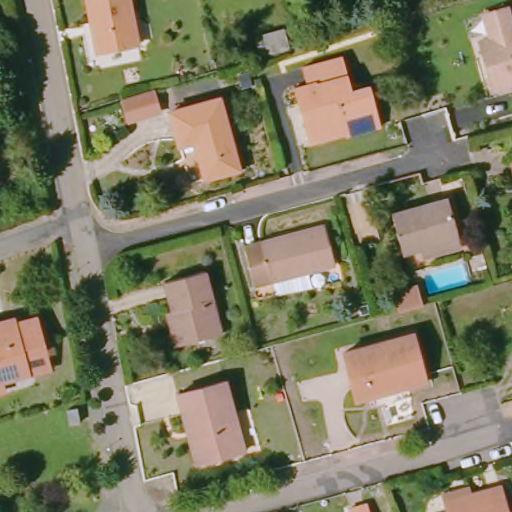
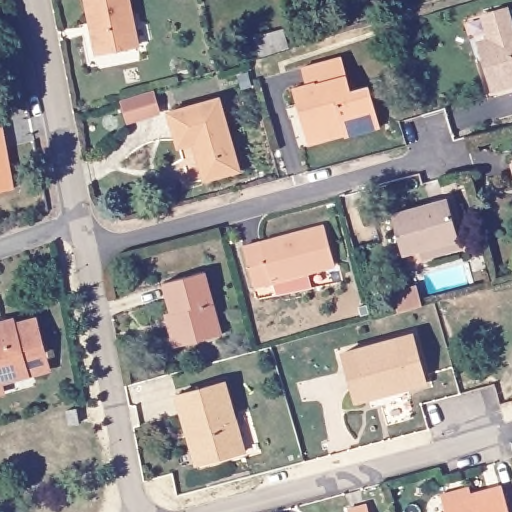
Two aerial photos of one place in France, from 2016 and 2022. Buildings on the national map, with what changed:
unchanged [(124,0),(133,50),(90,56),(81,0),(124,0)]
unchanged [(470,44),(483,40),(476,15),(499,9),(506,35),(512,33),(512,82),(482,89),(470,44)]
unchanged [(259,51),(255,38),(285,27),(290,42),(259,51)]
unchanged [(299,134),(287,88),(300,82),(295,68),(336,55),(347,87),(365,82),(377,127),(342,137),(302,147),(299,134)]
unchanged [(116,94),(147,86),(152,105),(121,113),(116,94)]
unchanged [(213,103),(232,177),(199,185),(188,147),(172,151),(163,116),(213,103)]
new [(1,126),(12,189),(0,192),(0,126),(1,126)]
unchanged [(512,167),(512,179),(510,168),(512,167)]
unchanged [(414,267),(410,255),(396,260),(386,217),(443,202),(454,245),(457,256),(414,267)]
unchanged [(270,292),(267,278),(248,284),(238,245),(320,224),(330,264),(306,270),(308,283),(270,292)]
unchanged [(162,316),(168,314),(161,284),(201,275),(216,336),(170,348),(162,316)]
unchanged [(420,281),(425,300),(401,306),(396,287),(420,281)]
unchanged [(10,319),(12,325),(30,319),(38,349),(43,367),(22,373),(0,380),(0,322),(10,319)]
unchanged [(337,354),(410,334),(423,388),(350,407),(337,354)]
unchanged [(178,427),(170,395),(218,382),(236,453),(193,466),(187,467),(178,427)]
unchanged [(65,405),(67,419),(56,421),(54,407),(65,405)]
unchanged [(505,512),(441,512),(438,503),(436,496),(465,489),(466,496),(498,488),(505,512)]
unchanged [(344,511),(365,506),(366,512),(344,512),(344,511)]

